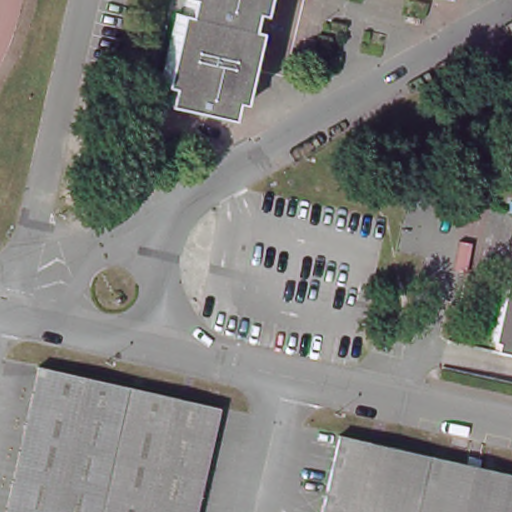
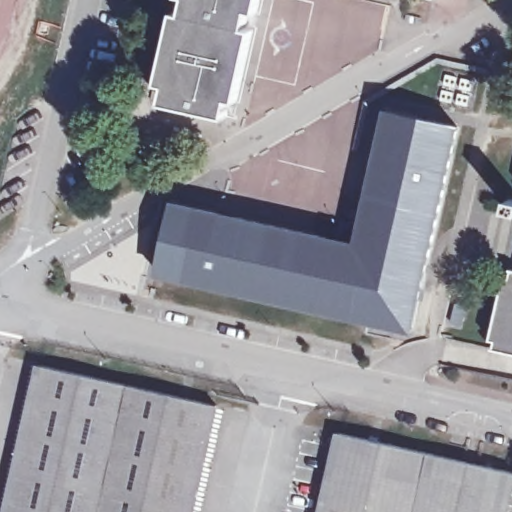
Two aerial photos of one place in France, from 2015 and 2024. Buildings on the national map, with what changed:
unchanged [(231,103),(227,118),(165,105),(171,85),(162,83),(180,0),(266,0),(242,105),(231,103)]
new [(354,241),(382,110),(459,124),(412,335),(155,274),(172,200),(354,241)]
unchanged [(490,346),(507,270),(512,271),(512,351),(490,346)]
unchanged [(39,364),(222,406),(197,512),(3,512),(39,364)]
unchanged [(337,433),(512,472),(512,511),(512,512),(320,512),(337,433)]

